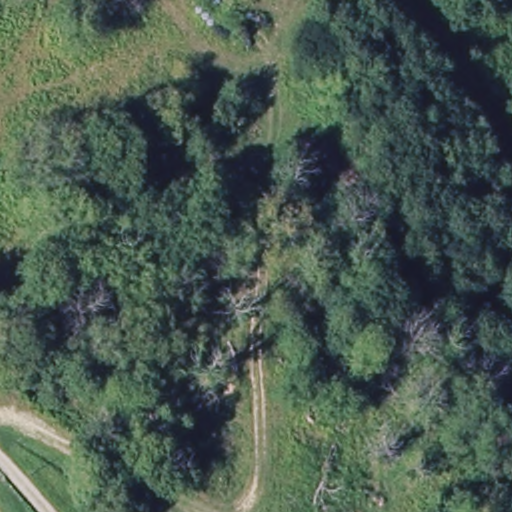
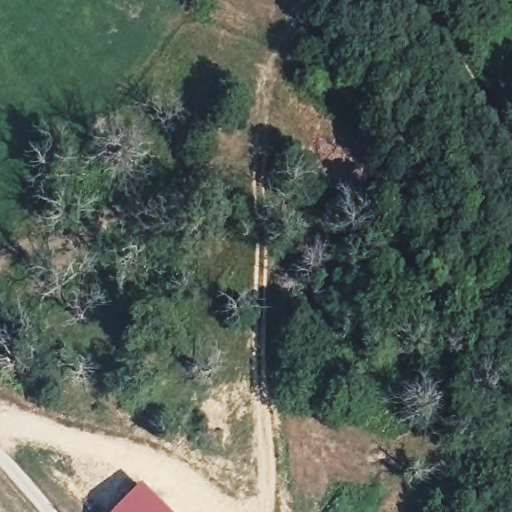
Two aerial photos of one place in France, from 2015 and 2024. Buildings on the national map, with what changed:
new [(142,487),(169,512),(115,512),(142,487)]

